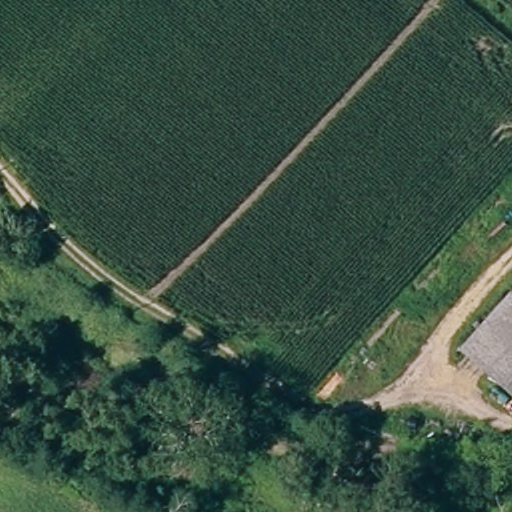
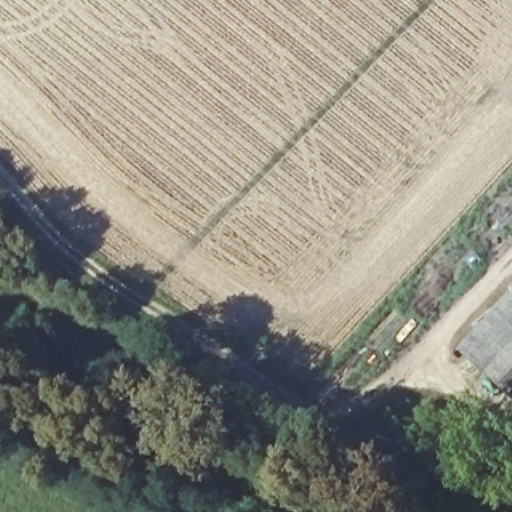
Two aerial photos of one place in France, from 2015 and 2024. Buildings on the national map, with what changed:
unchanged [(455,355),(512,290),(512,409),(455,355)]

